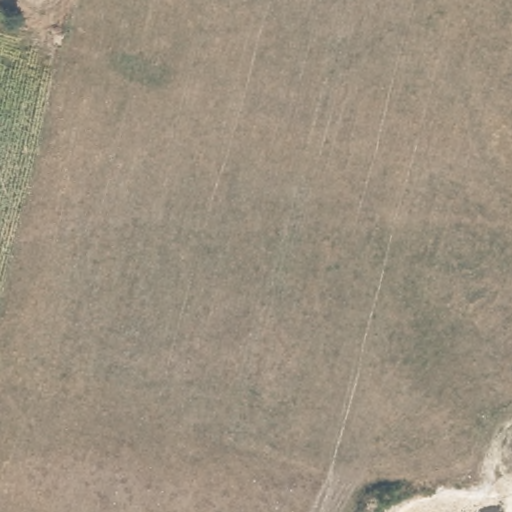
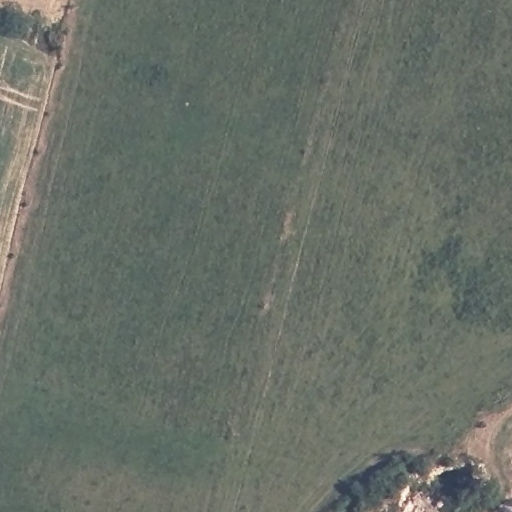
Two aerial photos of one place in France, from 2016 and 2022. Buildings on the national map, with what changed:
[]

